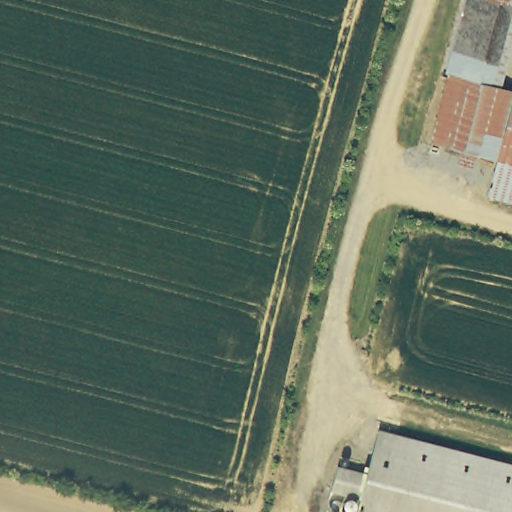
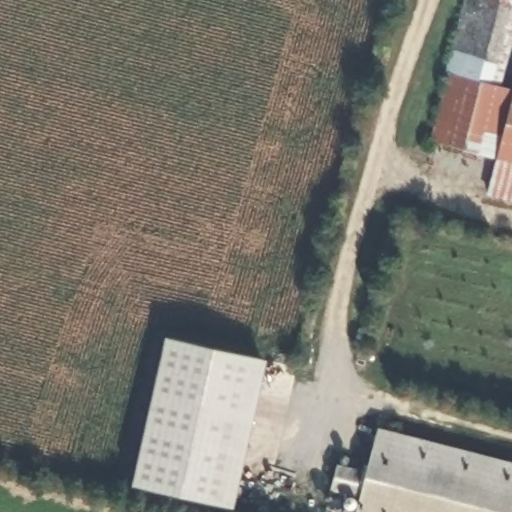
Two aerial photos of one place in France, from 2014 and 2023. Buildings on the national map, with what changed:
unchanged [(470,0),(512,0),(512,24),(510,23),(496,73),(452,61),(470,0)]
unchanged [(452,61),(496,73),(512,78),(512,193),(492,188),(500,161),(430,141),(452,61)]
new [(232,509),(132,486),(165,337),(266,360),(232,509)]
unchanged [(326,485),(332,460),(362,468),(373,424),(512,459),(512,512),(351,512),(356,492),(326,485)]

